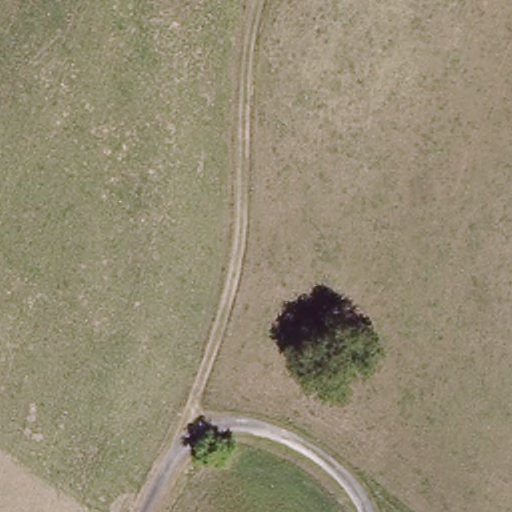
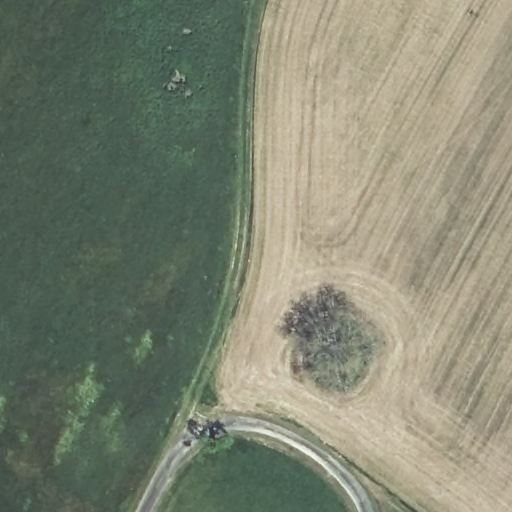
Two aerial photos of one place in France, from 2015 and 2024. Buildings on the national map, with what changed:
[]

